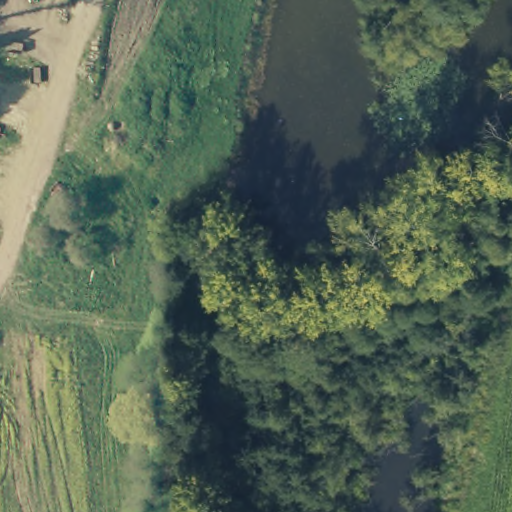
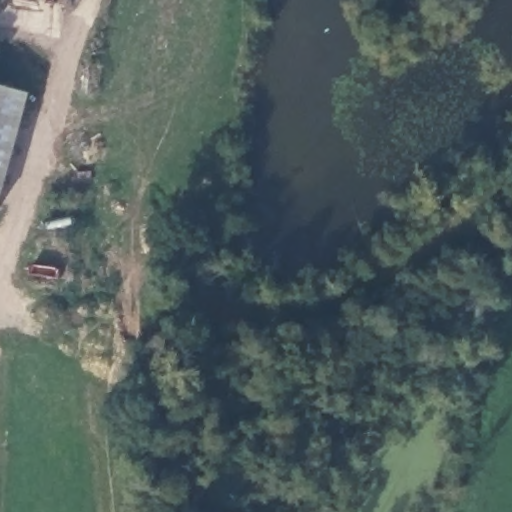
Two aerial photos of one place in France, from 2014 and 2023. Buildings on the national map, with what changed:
new [(30,95),(0,201),(0,87),(30,95)]

